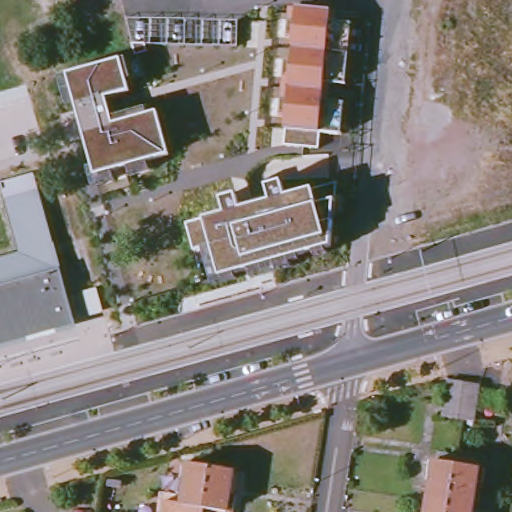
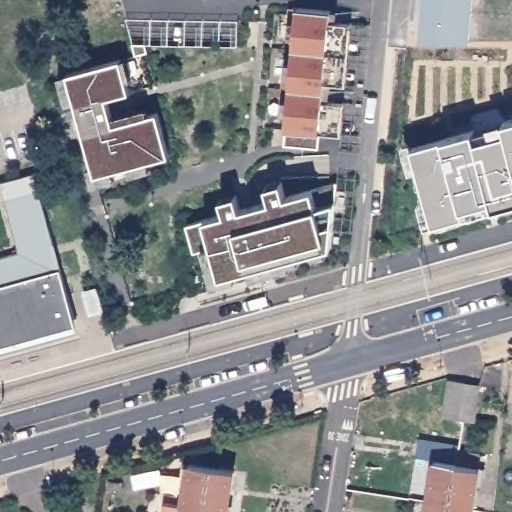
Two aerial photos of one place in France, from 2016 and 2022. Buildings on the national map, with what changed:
new [(467,50),(417,49),(422,0),(471,0),(467,50)]
unchanged [(328,19),(350,22),(344,82),(322,79),(322,98),(344,100),(341,131),(319,129),(284,126),(295,6),(330,9),(328,19)]
unchanged [(128,90),(105,97),(110,122),(155,109),(168,154),(95,175),(66,73),(119,59),(128,90)]
new [(512,118),(512,202),(494,207),(435,224),(412,147),(444,139),(512,118)]
unchanged [(23,251),(4,181),(37,172),(56,242),(54,242),(61,268),(64,267),(77,318),(80,324),(0,346),(0,257),(23,251)]
unchanged [(331,201),(330,245),(220,277),(211,249),(194,253),(186,223),(207,216),(225,213),(220,196),(234,193),(239,209),(269,201),(265,185),(280,180),(285,194),(312,189),(337,181),(331,201)]
unchanged [(460,418),(445,415),(450,381),(465,383),(480,385),(475,420),(460,418)]
unchanged [(435,461),(457,464),(460,452),(460,449),(481,452),(479,467),(472,507),(471,512),(427,512),(429,501),(435,461)]
unchanged [(179,503),(185,464),(207,467),(230,471),(224,511),(201,508),(200,512),(160,512),(161,501),(179,503)]

